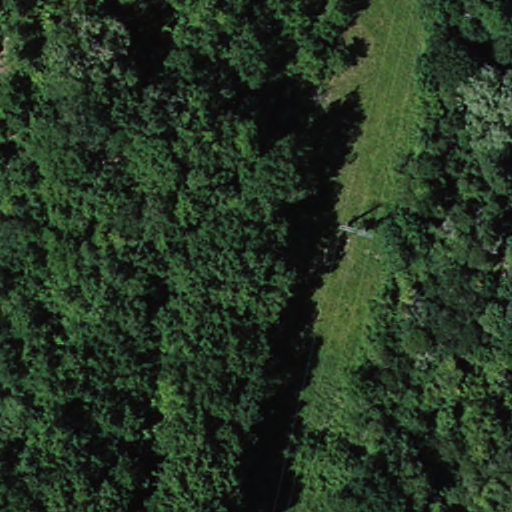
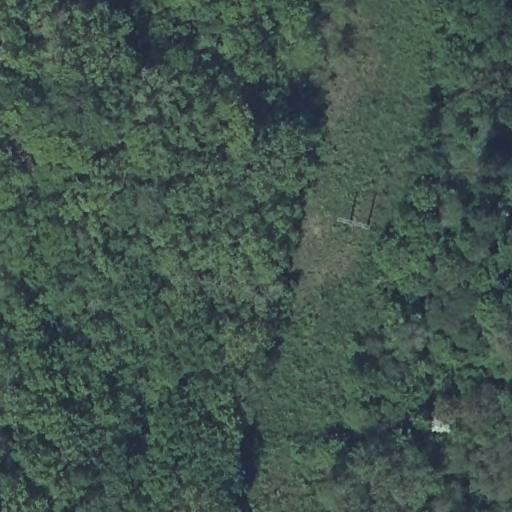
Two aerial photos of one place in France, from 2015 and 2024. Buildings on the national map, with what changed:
unchanged [(136,453),(138,440),(163,442),(163,453),(136,453)]

